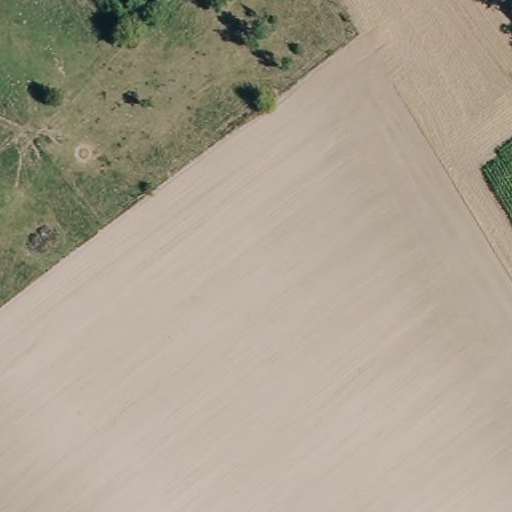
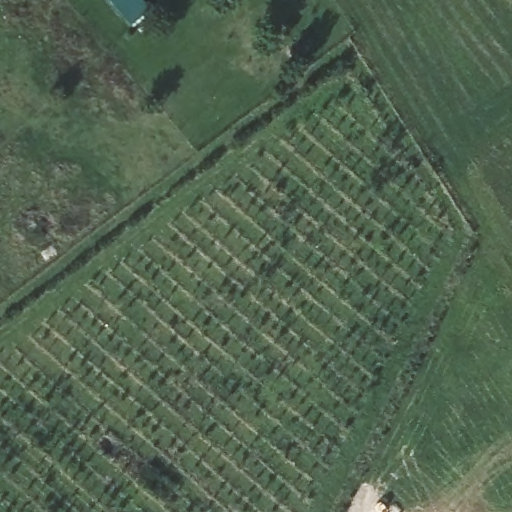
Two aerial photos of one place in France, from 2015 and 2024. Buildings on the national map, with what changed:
[]

